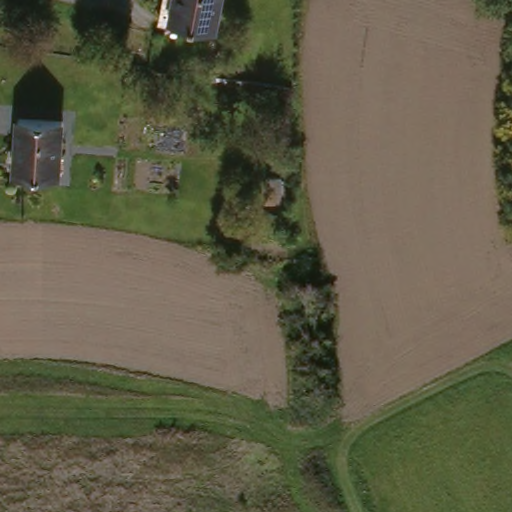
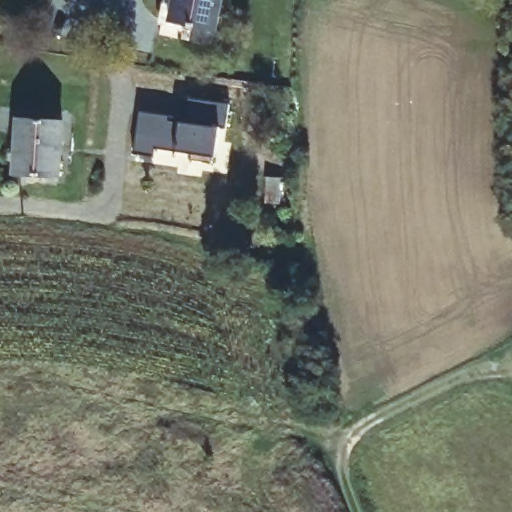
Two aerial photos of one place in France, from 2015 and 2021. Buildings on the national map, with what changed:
unchanged [(174,8),(176,0),(234,0),(230,20),(174,8)]
new [(156,153),(155,160),(134,156),(141,113),(172,118),(187,120),(190,99),(232,106),(227,133),(218,131),(212,167),(190,164),(191,158),(176,156),(156,153)]
unchanged [(23,118),(69,121),(62,177),(18,172),(23,118)]
unchanged [(293,182),(292,208),(280,207),(280,181),(293,182)]

